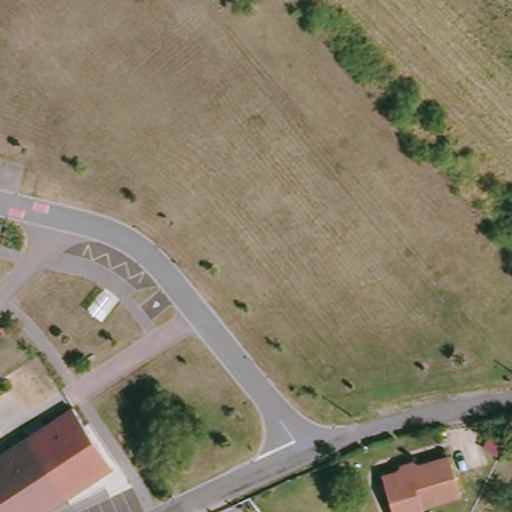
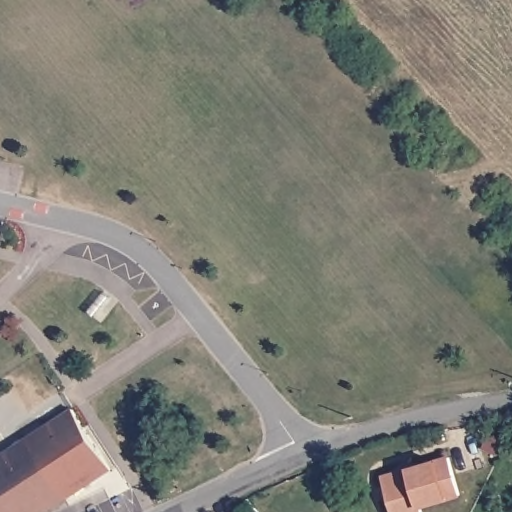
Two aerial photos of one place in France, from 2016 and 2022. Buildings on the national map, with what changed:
unchanged [(73,412),(113,473),(69,501),(28,441),(73,412)]
unchanged [(1,470),(0,468),(0,461),(28,441),(69,501),(53,512),(0,512),(0,470),(1,470)]
unchanged [(407,469),(405,464),(416,461),(417,465),(453,455),(464,492),(424,504),(427,512),(396,512),(386,475),(407,469)]

